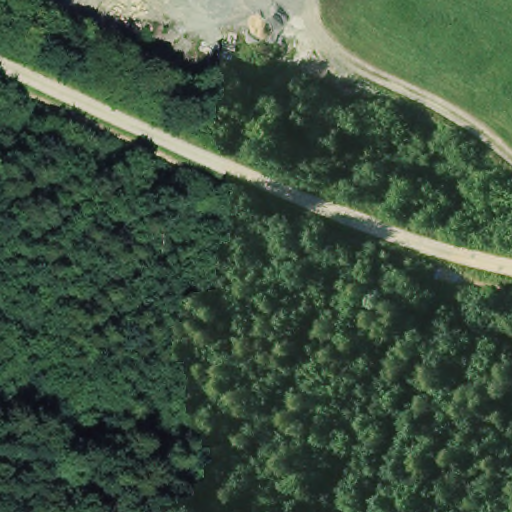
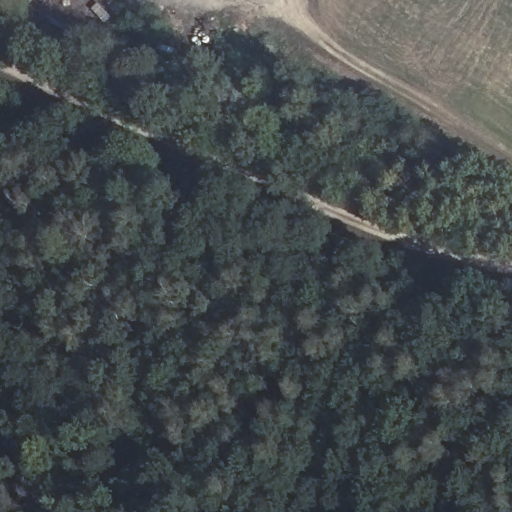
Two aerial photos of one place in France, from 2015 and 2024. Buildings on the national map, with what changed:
[]

